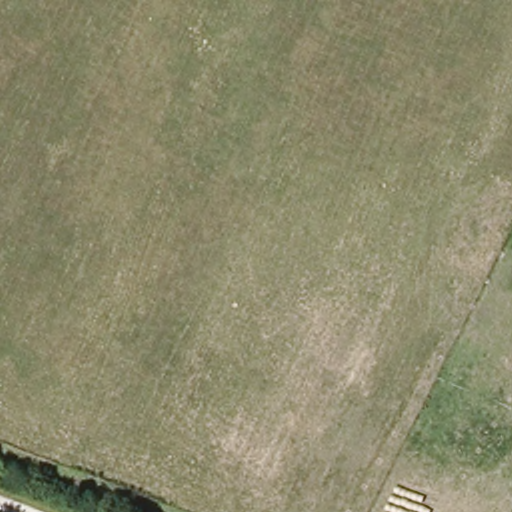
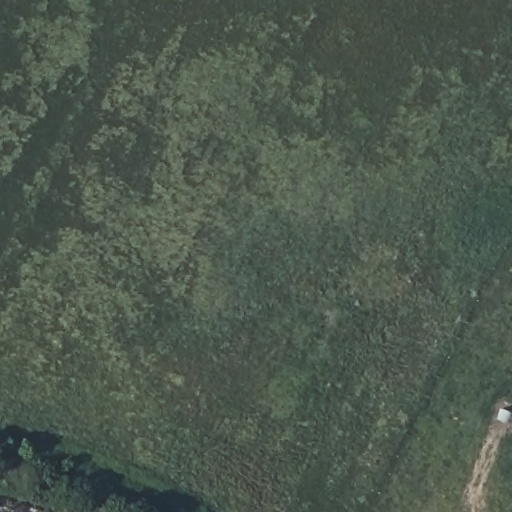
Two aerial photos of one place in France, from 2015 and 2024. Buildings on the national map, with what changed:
[]

